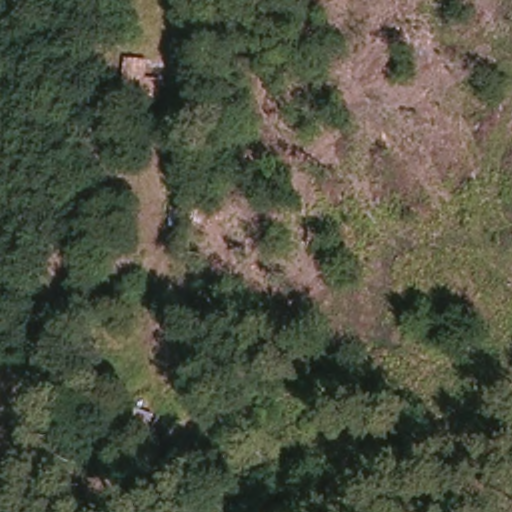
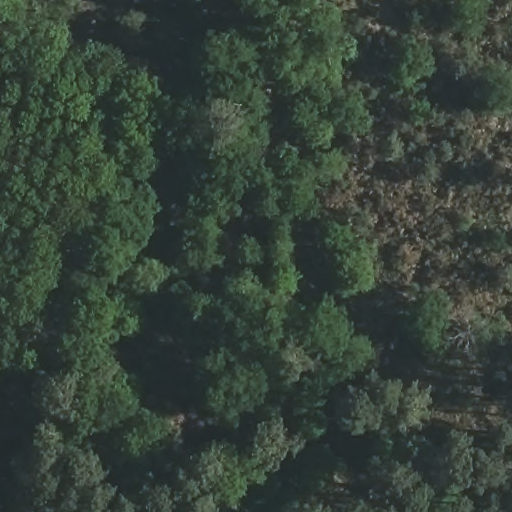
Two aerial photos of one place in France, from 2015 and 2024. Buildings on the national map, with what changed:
unchanged [(1,1),(1,32),(0,33),(0,0),(1,0),(1,1)]
unchanged [(121,100),(126,58),(147,61),(148,79),(161,80),(158,103),(121,100)]
unchanged [(169,294),(169,273),(185,272),(184,296),(169,294)]
unchanged [(162,325),(164,307),(184,307),(183,325),(162,325)]
unchanged [(165,362),(168,340),(182,341),(180,363),(165,362)]
unchanged [(151,512),(153,487),(173,485),(171,512),(151,512)]

